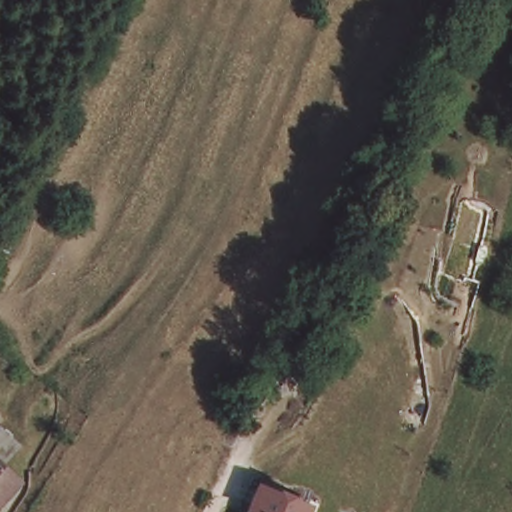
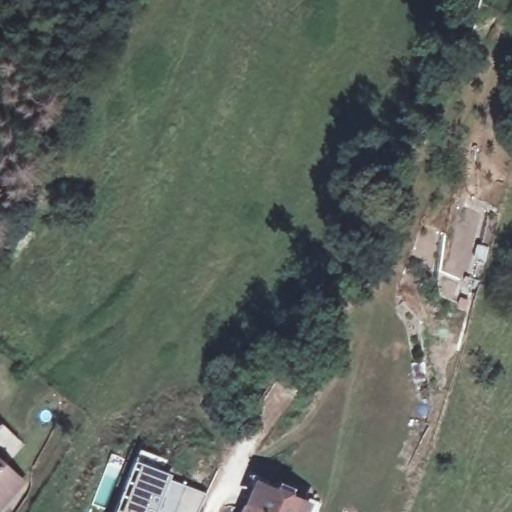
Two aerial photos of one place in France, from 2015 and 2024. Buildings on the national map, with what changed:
unchanged [(12,478),(20,484),(0,503),(0,428),(1,427),(26,447),(16,458),(2,471),(10,479),(12,478)]
new [(175,461),(171,478),(208,492),(198,512),(114,512),(139,447),(175,461)]
unchanged [(293,512),(240,512),(251,483),(263,487),(301,501),(305,489),(320,495),(316,506),(313,512),(302,512),(295,510),(293,512)]

